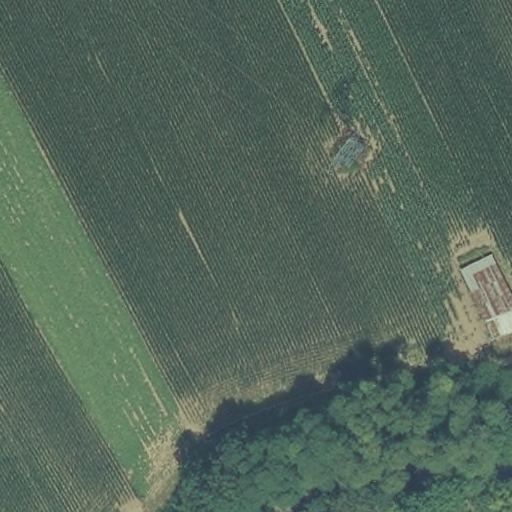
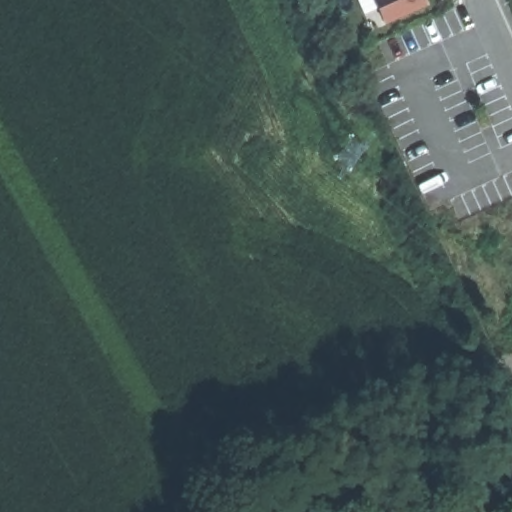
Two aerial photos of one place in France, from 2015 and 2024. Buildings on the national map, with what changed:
new [(385,22),(375,0),(425,0),(427,4),(385,22)]
demolished [(494,331),(469,267),(498,250),(512,283),(512,329),(494,331)]

